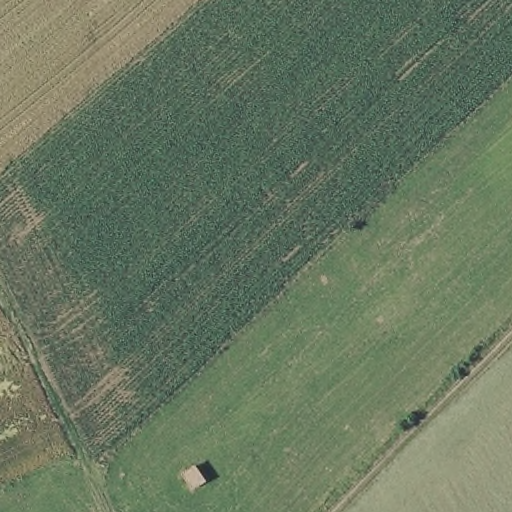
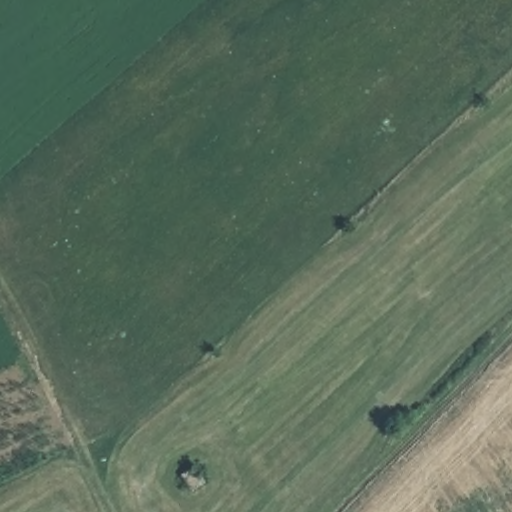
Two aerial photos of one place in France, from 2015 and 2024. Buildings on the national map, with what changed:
unchanged [(196,464),(206,482),(193,493),(182,476),(196,464)]

